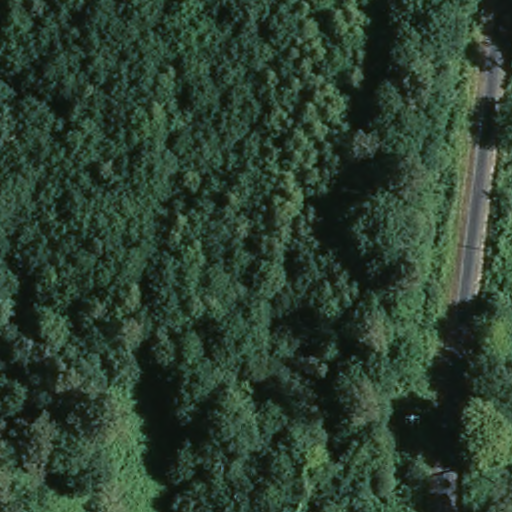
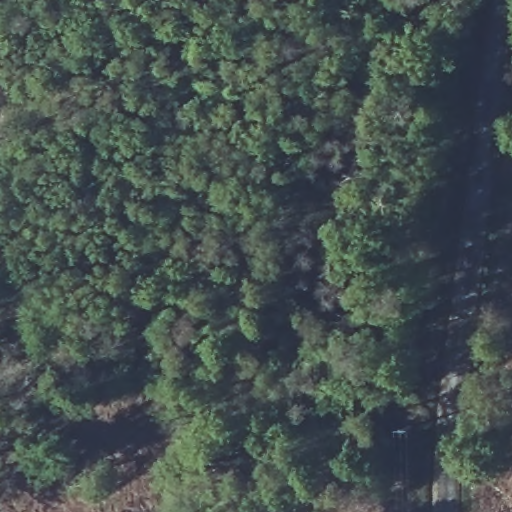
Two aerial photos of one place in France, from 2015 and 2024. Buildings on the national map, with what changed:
[]

